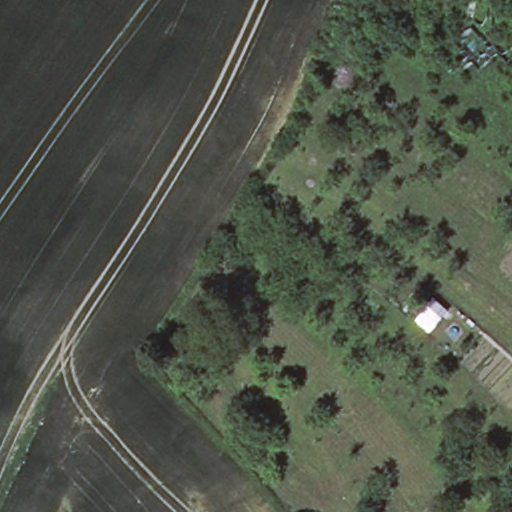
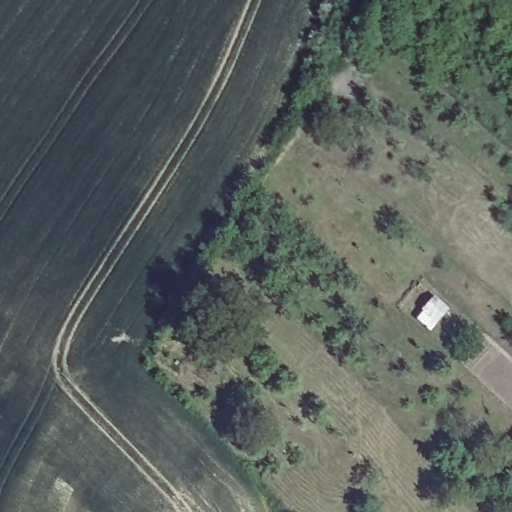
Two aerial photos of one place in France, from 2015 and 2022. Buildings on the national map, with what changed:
unchanged [(434,301),(446,312),(431,330),(419,320),(434,301)]

